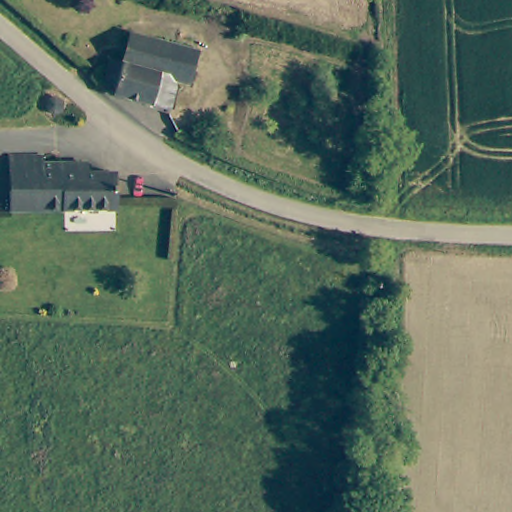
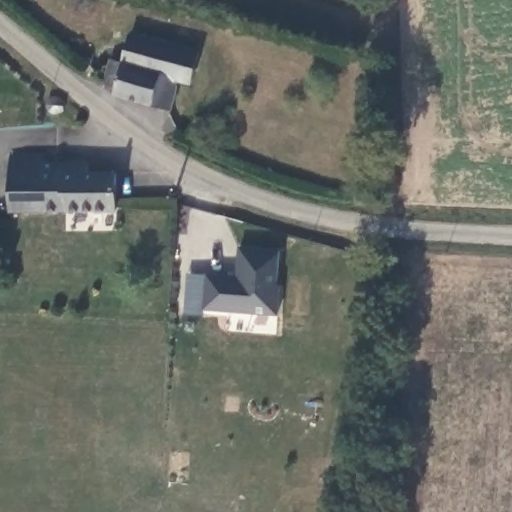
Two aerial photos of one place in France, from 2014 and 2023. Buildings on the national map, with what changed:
unchanged [(202,54),(194,84),(180,81),(174,111),(119,95),(120,87),(109,86),(115,59),(127,61),(134,34),(202,54)]
unchanged [(5,211),(6,157),(39,156),(38,163),(82,163),(82,172),(111,172),(112,209),(62,210),(5,211)]
unchanged [(112,209),(112,231),(62,232),(62,210),(112,209)]
new [(277,283),(281,284),(278,315),(204,311),(206,272),(236,275),(236,246),(281,249),(277,283)]

